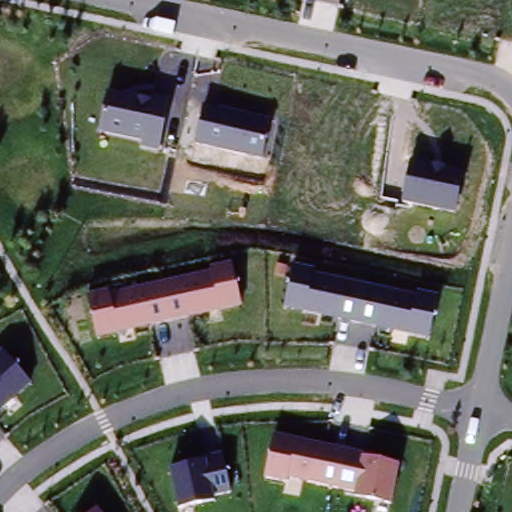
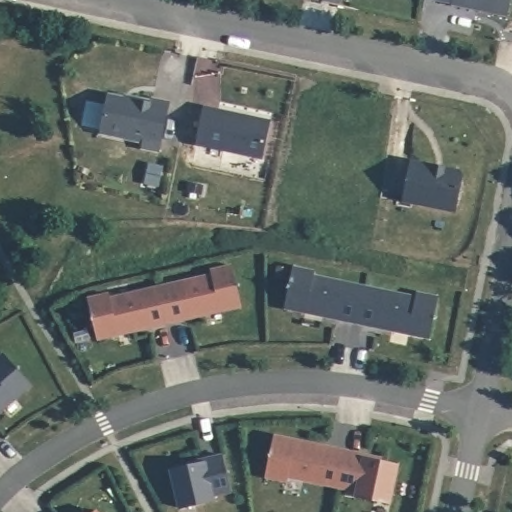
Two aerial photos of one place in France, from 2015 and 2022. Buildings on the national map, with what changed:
new [(508,20),(454,7),(454,6),(431,1),(426,0),(512,0),(512,1),(508,20)]
unchanged [(103,135),(111,96),(168,105),(160,146),(103,135)]
unchanged [(196,145),(203,110),(270,123),(261,160),(196,145)]
unchanged [(409,158),(464,170),(456,213),(401,201),(409,158)]
unchanged [(87,298),(232,265),(241,307),(98,341),(87,298)]
unchanged [(294,267),(437,297),(429,340),(285,308),(294,267)]
unchanged [(0,357),(3,355),(30,386),(0,413),(0,357)]
unchanged [(276,435),(399,465),(389,504),(288,477),(286,484),(266,480),(276,435)]
unchanged [(169,470),(221,458),(231,493),(214,496),(215,502),(178,508),(169,470)]
unchanged [(99,512),(94,512),(96,510),(99,512)]

